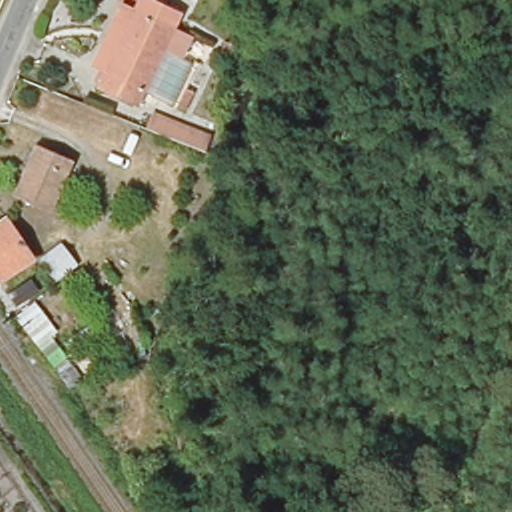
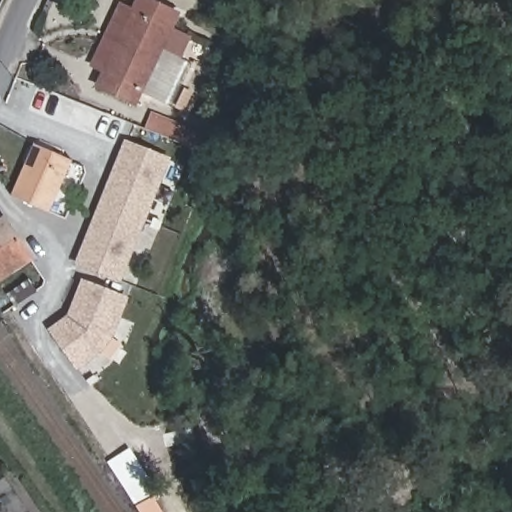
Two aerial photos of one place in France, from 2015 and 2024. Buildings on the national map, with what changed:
unchanged [(140,0),(180,20),(137,111),(97,95),(106,76),(92,70),(120,10),(132,16),(140,0)]
unchanged [(192,105),(186,101),(192,86),(199,90),(192,105)]
unchanged [(152,129),(159,115),(212,140),(207,152),(152,129)]
new [(129,138),(169,156),(116,276),(76,258),(129,138)]
unchanged [(50,218),(9,200),(33,146),(74,164),(50,218)]
unchanged [(0,225),(7,221),(34,263),(2,284),(0,282),(0,225)]
demolished [(53,290),(40,261),(60,245),(80,270),(53,290)]
new [(102,354),(79,370),(49,328),(69,315),(84,278),(131,298),(114,338),(102,354)]

